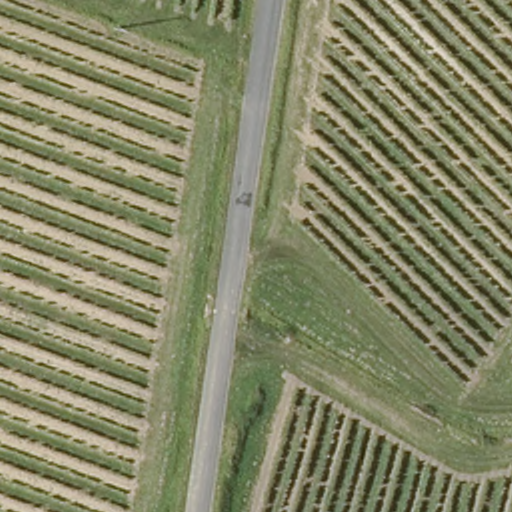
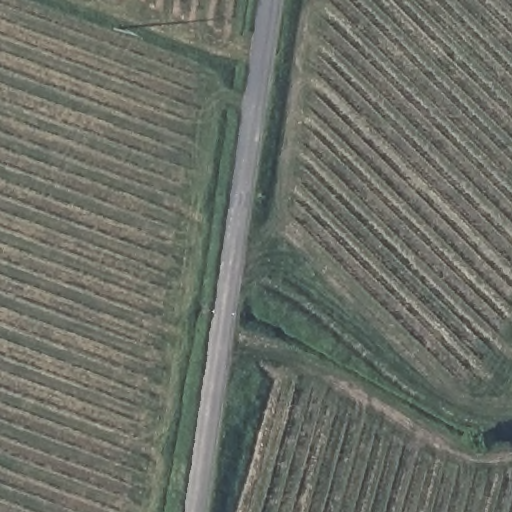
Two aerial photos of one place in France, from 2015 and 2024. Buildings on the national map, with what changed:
[]

